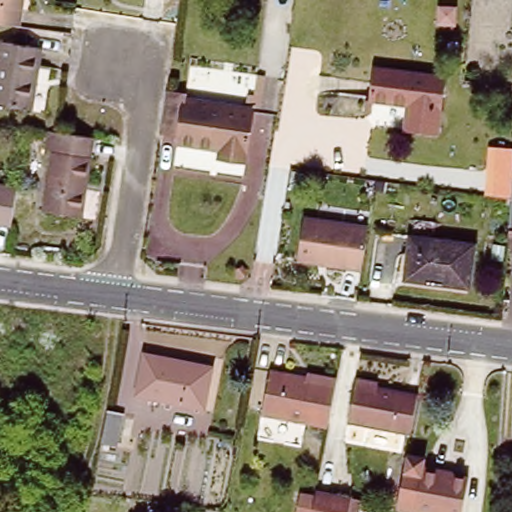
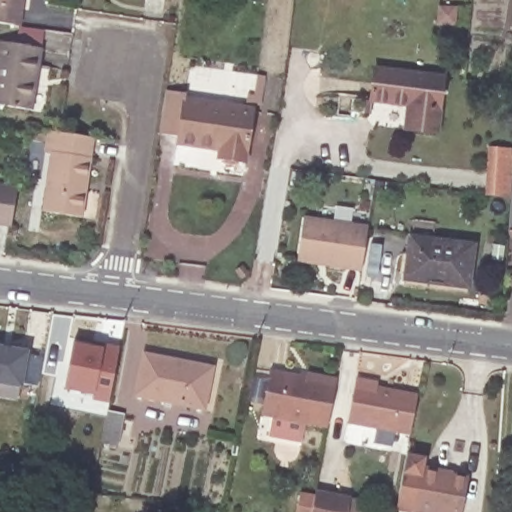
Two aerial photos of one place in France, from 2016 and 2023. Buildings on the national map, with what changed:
unchanged [(0,0),(26,0),(24,15),(0,11),(0,0)]
unchanged [(28,108),(0,104),(0,43),(36,48),(28,108)]
unchanged [(442,77),(434,132),(403,128),(406,103),(369,98),(373,67),(405,72),(442,77)]
unchanged [(251,112),(244,162),(219,159),(220,151),(175,144),(176,139),(154,136),(160,91),(186,96),(186,102),(251,112)]
unchanged [(90,140),(78,217),(43,212),(51,154),(43,152),(45,133),(54,134),(90,140)]
unchanged [(484,195),(488,145),(512,147),(512,177),(509,176),(508,198),(484,195)]
unchanged [(504,233),(508,198),(509,176),(512,177),(512,234),(504,233)]
unchanged [(13,224),(0,221),(0,184),(19,187),(13,224)]
unchanged [(369,227),(364,271),(299,262),(304,219),(369,227)]
unchanged [(471,244),(466,286),(401,280),(407,236),(471,244)]
new [(88,400),(92,395),(60,390),(70,342),(99,348),(102,343),(119,347),(109,405),(88,400)]
new [(23,385),(22,390),(0,387),(0,346),(28,352),(28,357),(40,358),(36,387),(23,385)]
unchanged [(211,369),(203,410),(136,397),(143,356),(211,369)]
unchanged [(308,372),(336,378),(327,428),(261,415),(270,371),(306,378),(308,372)]
unchanged [(417,394),(409,435),(348,423),(356,379),(378,383),(378,387),(417,394)]
unchanged [(127,417),(121,450),(103,447),(109,415),(127,417)]
unchanged [(394,510),(403,452),(423,455),(421,468),(413,512),(405,512),(394,510)]
unchanged [(421,468),(466,478),(460,512),(413,512),(421,468)]
unchanged [(300,491),(315,493),(316,488),(348,491),(359,493),(361,493),(358,512),(298,512),(300,491)]

